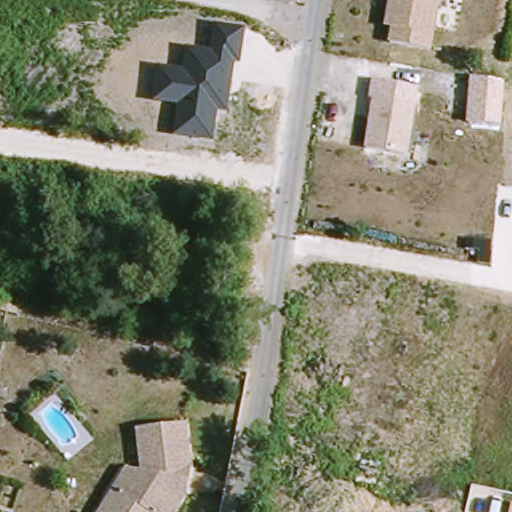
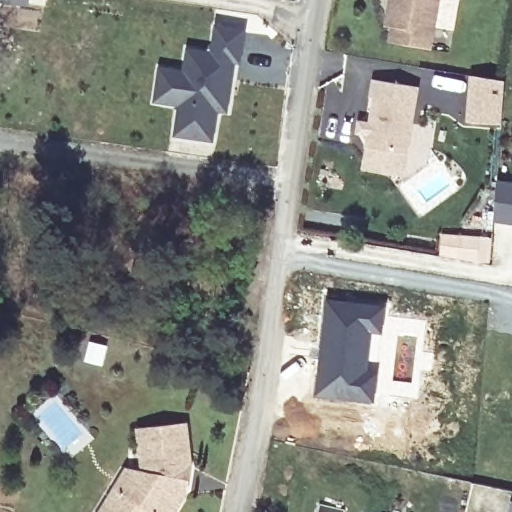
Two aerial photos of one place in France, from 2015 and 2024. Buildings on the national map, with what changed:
unchanged [(267,7),(261,6),(237,3),(237,0),(268,0),(267,7)]
unchanged [(390,1),(390,0),(437,0),(429,48),(389,42),(392,25),(387,17),(390,1)]
unchanged [(241,66),(236,65),(229,113),(217,113),(214,141),(174,136),(177,106),(154,104),(157,67),(182,69),(184,49),(210,51),(212,26),(246,30),(241,66)]
unchanged [(501,124),(466,121),(468,75),(505,81),(501,124)]
unchanged [(407,152),(366,147),(375,98),(368,97),(371,80),(417,88),(407,152)]
new [(440,232),(492,236),(491,264),(437,256),(440,232)]
new [(325,297),(386,303),(382,336),(371,334),(368,361),(379,362),(373,404),(313,398),(325,297)]
unchanged [(129,464),(142,467),(137,425),(185,420),(189,463),(185,489),(171,512),(99,512),(116,486),(129,464)]
new [(512,504),(512,512),(509,512),(511,504),(512,504)]

